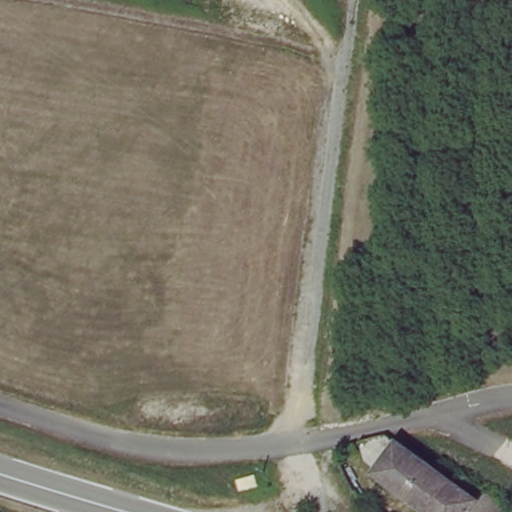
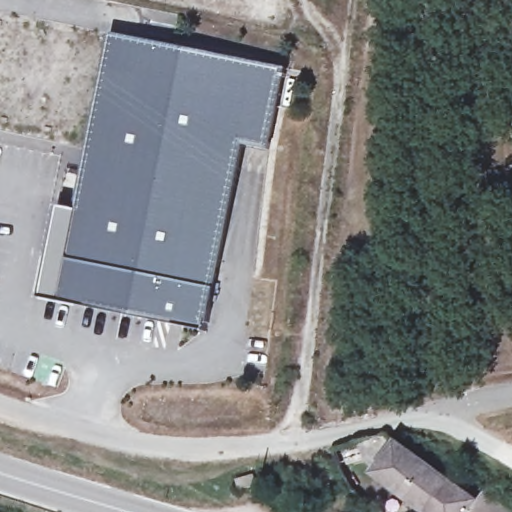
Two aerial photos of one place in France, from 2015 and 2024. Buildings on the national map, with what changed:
new [(112,35),(286,71),(269,149),(240,145),(206,323),(58,293),(75,211),(112,35)]
new [(58,207),(75,210),(58,293),(206,323),(204,332),(39,298),(58,207)]
unchanged [(406,450),(484,500),(476,512),(430,512),(383,482),(406,450)]
unchanged [(476,512),(484,500),(503,512),(476,512)]

